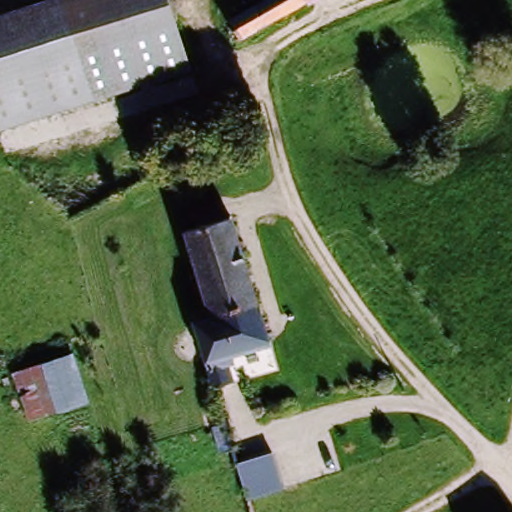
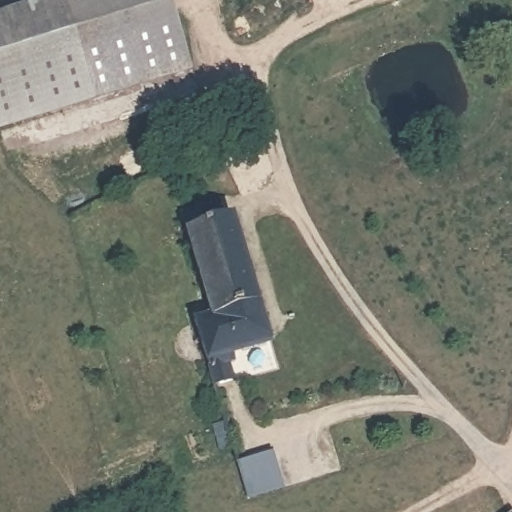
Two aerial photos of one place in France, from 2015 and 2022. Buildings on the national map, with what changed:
unchanged [(90,105),(0,127),(0,11),(43,0),(65,0),(90,105)]
unchanged [(193,80),(90,105),(65,0),(174,0),(193,80)]
unchanged [(300,9),(296,1),(235,42),(223,25),(259,0),(318,0),(300,9)]
unchanged [(238,367),(241,381),(221,390),(203,327),(218,320),(196,227),(201,224),(198,208),(234,195),(272,339),(246,350),(246,362),(238,367)]
demolished [(14,374),(69,355),(89,401),(29,420),(14,374)]
unchanged [(249,504),(242,460),(273,452),(281,498),(249,504)]

